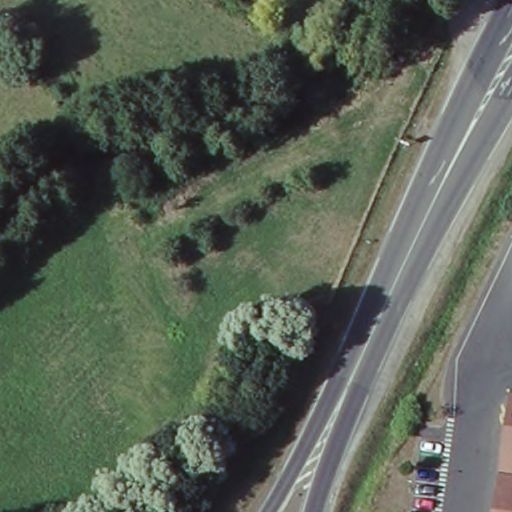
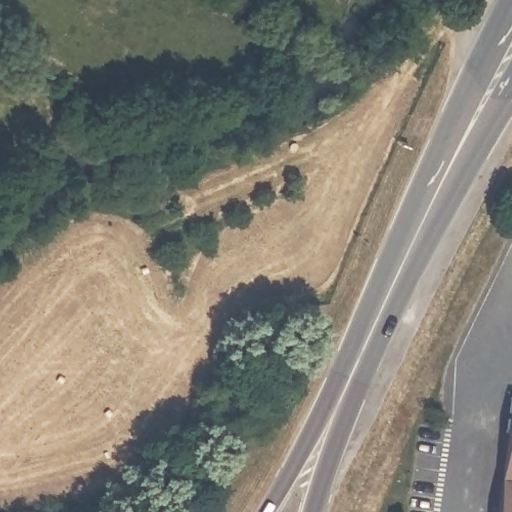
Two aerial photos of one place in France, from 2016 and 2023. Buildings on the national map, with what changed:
unchanged [(512,398),(512,512),(497,512),(511,398),(512,398)]

